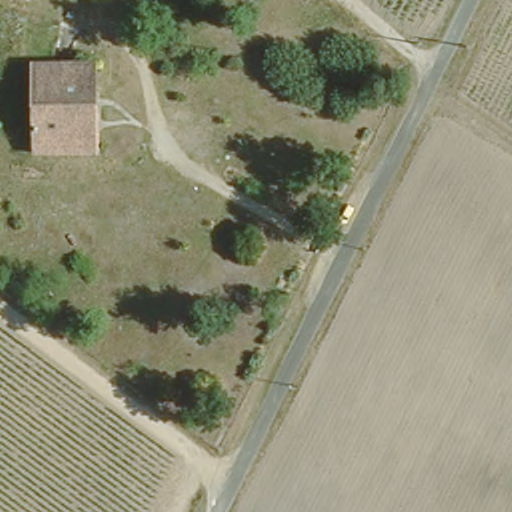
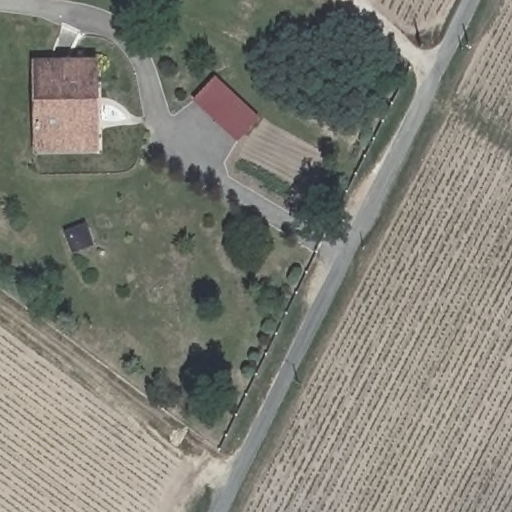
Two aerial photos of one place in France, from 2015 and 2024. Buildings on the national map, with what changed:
unchanged [(100,58),(103,153),(35,153),(32,60),(100,58)]
new [(257,117),(236,141),(192,102),(213,78),(257,117)]

